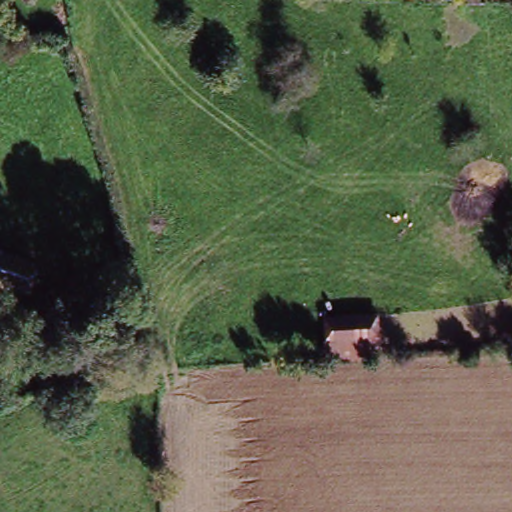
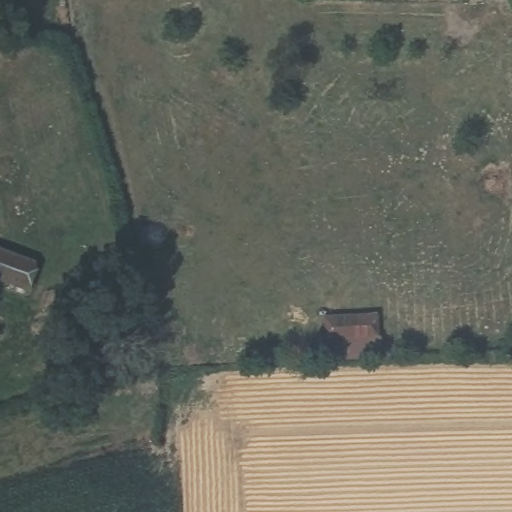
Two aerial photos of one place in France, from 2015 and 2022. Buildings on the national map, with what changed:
unchanged [(39,264),(41,274),(43,288),(0,286),(0,261),(39,264)]
unchanged [(319,332),(335,330),(356,329),(371,327),(374,352),(359,354),(338,357),(321,359),(319,332)]

